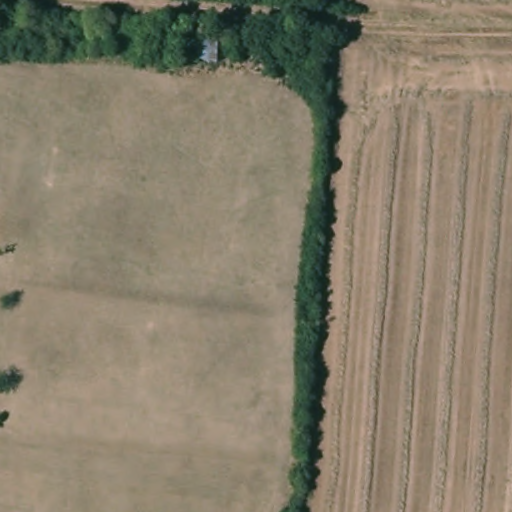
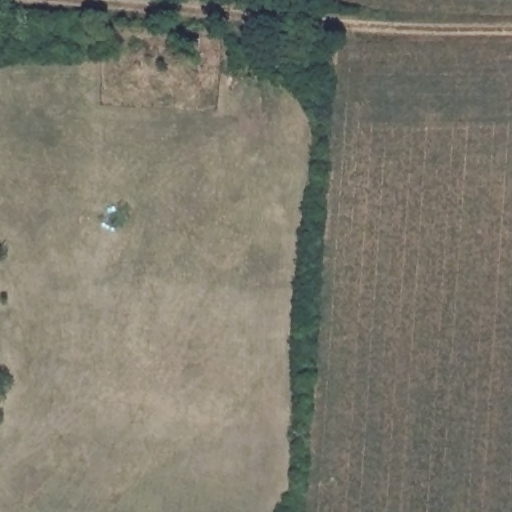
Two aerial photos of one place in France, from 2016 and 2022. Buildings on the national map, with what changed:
unchanged [(190,61),(193,38),(220,39),(218,63),(190,61)]

